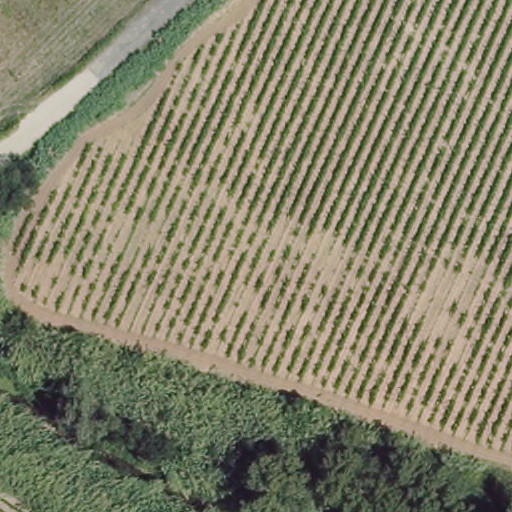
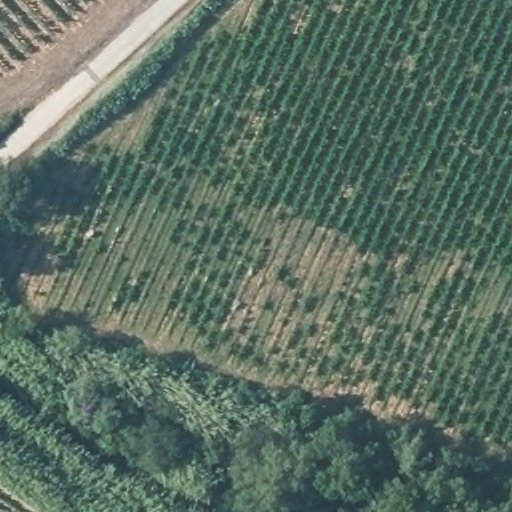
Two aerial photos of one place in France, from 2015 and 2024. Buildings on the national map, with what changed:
[]

